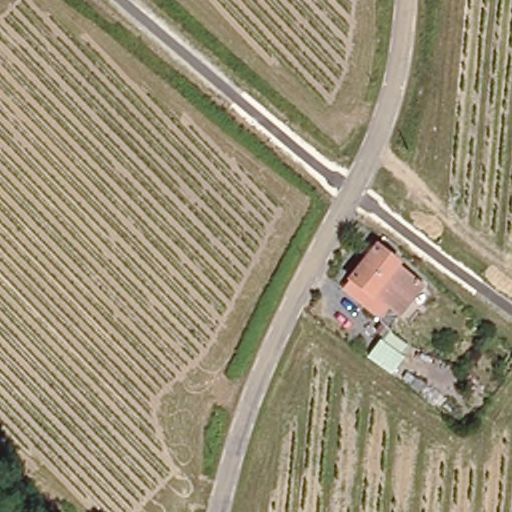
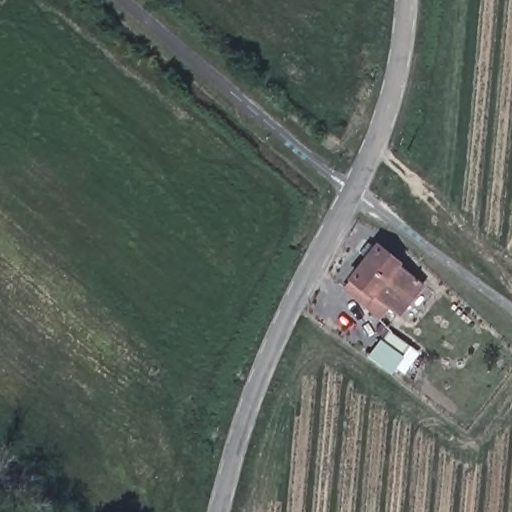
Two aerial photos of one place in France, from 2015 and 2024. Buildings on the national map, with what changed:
unchanged [(370,238),(426,282),(403,312),(370,288),(366,294),(346,280),(370,238)]

